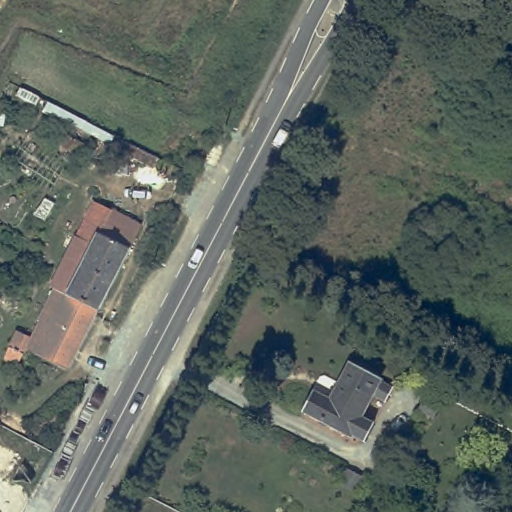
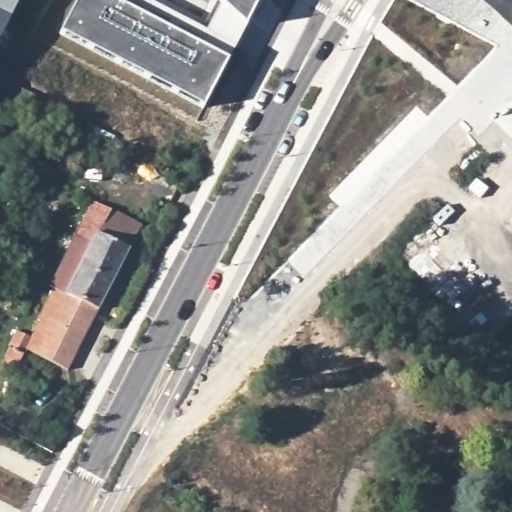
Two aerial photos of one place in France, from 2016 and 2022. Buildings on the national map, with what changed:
new [(0,35),(0,0),(18,0),(0,35)]
new [(70,0),(233,0),(231,2),(249,20),(236,40),(247,46),(212,112),(175,95),(171,103),(109,74),(114,63),(52,35),(70,0)]
unchanged [(97,201),(146,225),(117,281),(69,257),(97,201)]
unchanged [(72,371),(33,350),(29,354),(25,361),(22,364),(17,365),(14,364),(10,361),(10,356),(10,355),(20,330),(35,337),(44,321),(42,321),(58,288),(54,286),(69,257),(117,281),(72,371)]
unchanged [(390,407),(376,400),(365,422),(378,429),(369,446),(356,439),(355,442),(306,416),(316,396),(334,405),(353,367),(385,383),(383,386),(397,393),(390,407)]

